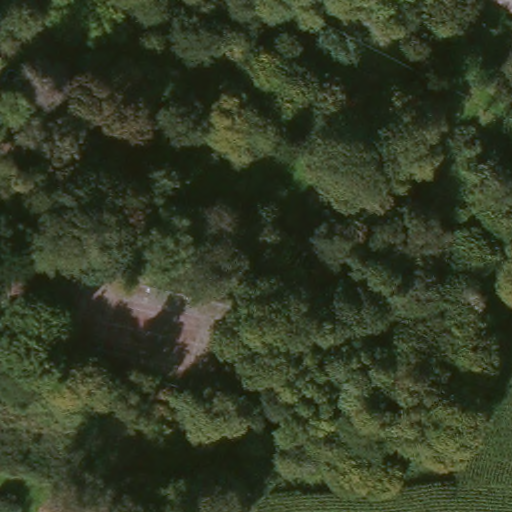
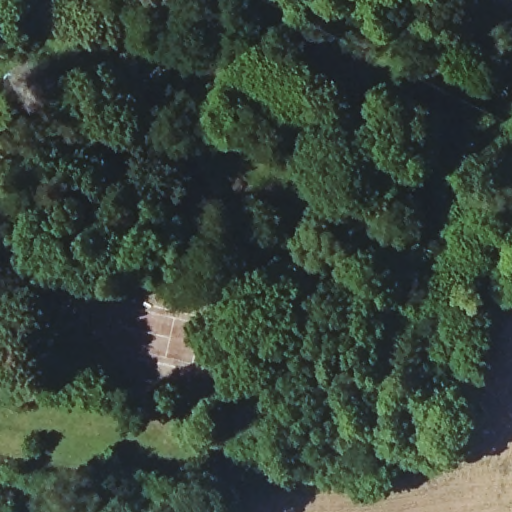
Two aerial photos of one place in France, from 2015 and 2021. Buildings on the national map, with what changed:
[]

